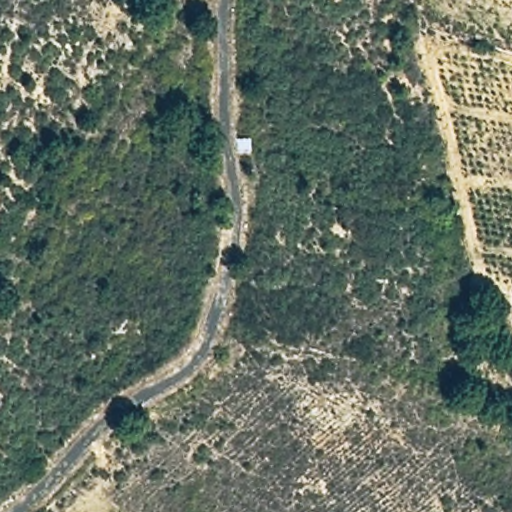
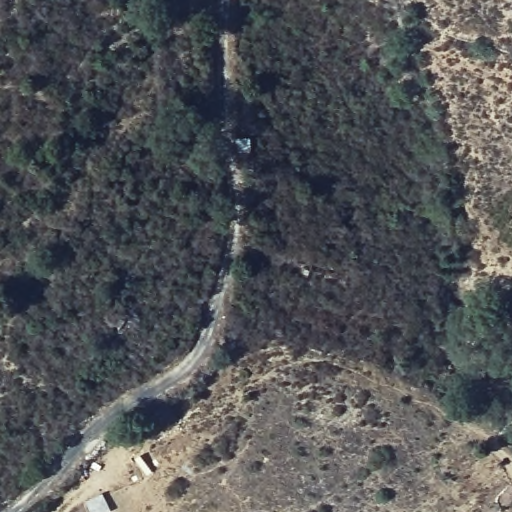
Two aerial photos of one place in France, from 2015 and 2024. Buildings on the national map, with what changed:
unchanged [(248,131),(252,145),(238,150),(236,138),(248,131)]

